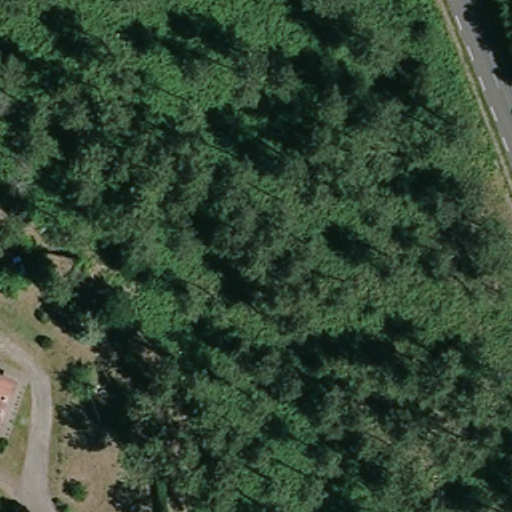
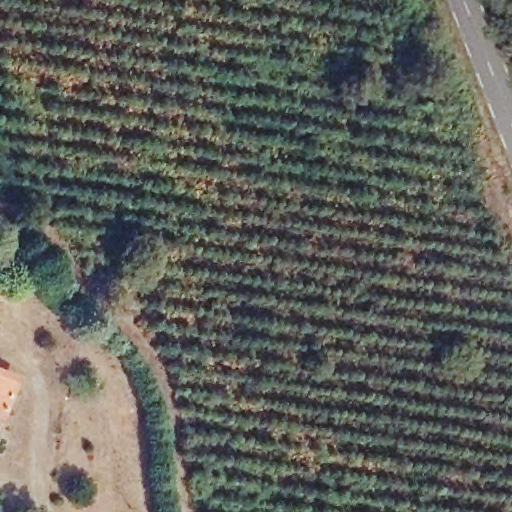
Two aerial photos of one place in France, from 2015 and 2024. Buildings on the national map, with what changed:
unchanged [(4,430),(0,429),(0,376),(20,383),(4,430)]

